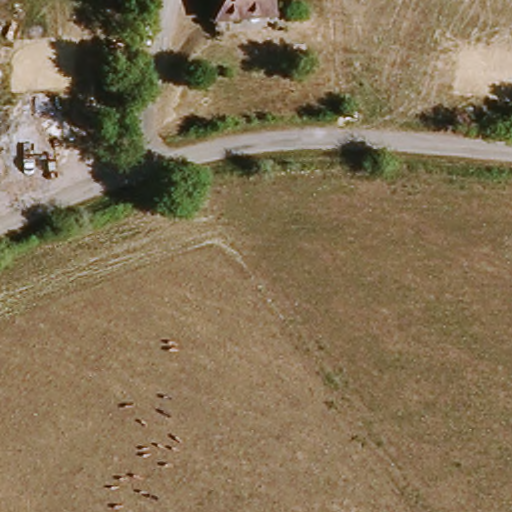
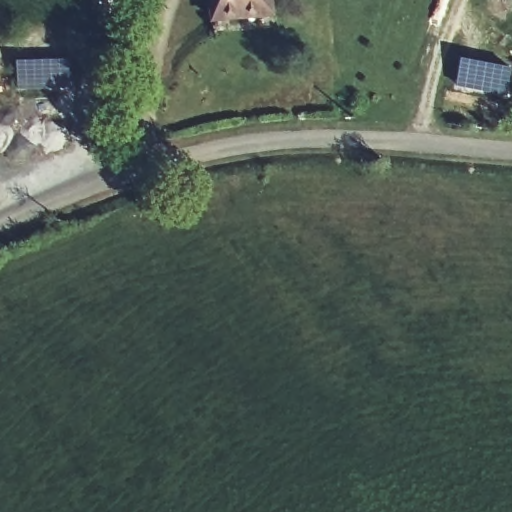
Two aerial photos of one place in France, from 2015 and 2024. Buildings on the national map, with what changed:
unchanged [(275,17),(221,18),(221,0),(275,0),(275,17)]
new [(70,90),(19,92),(18,61),(70,58),(70,90)]
new [(507,97),(457,87),(462,60),(512,68),(507,97)]

